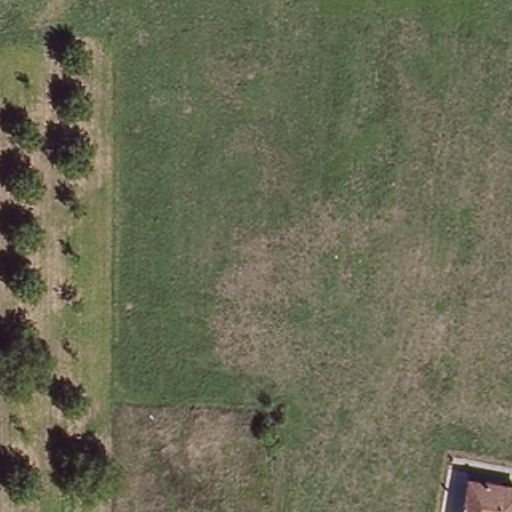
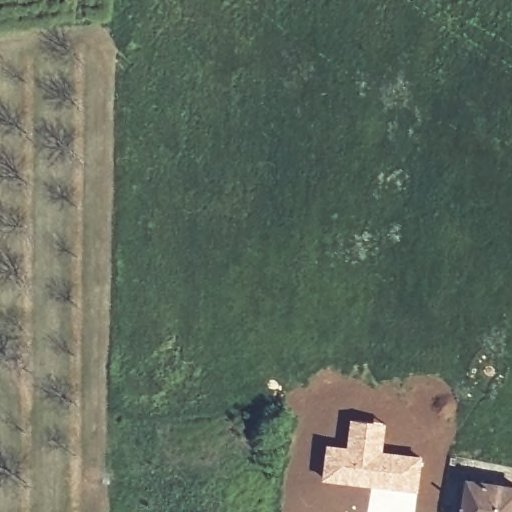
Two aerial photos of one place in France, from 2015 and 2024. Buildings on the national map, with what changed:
new [(326,443),(346,446),(350,417),(386,423),(383,450),(423,456),(417,492),(321,481),(326,443)]
unchanged [(512,490),(512,512),(465,512),(468,486),(512,490)]

